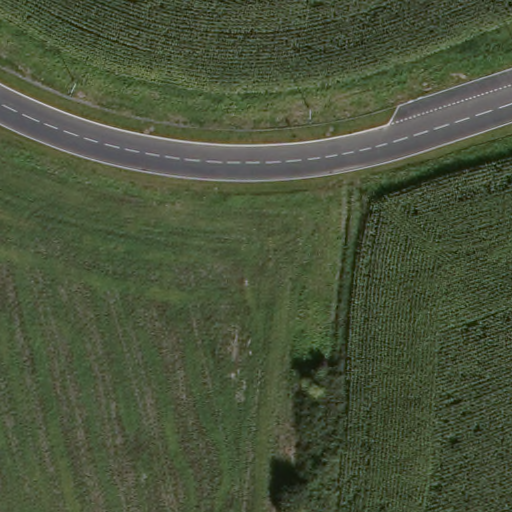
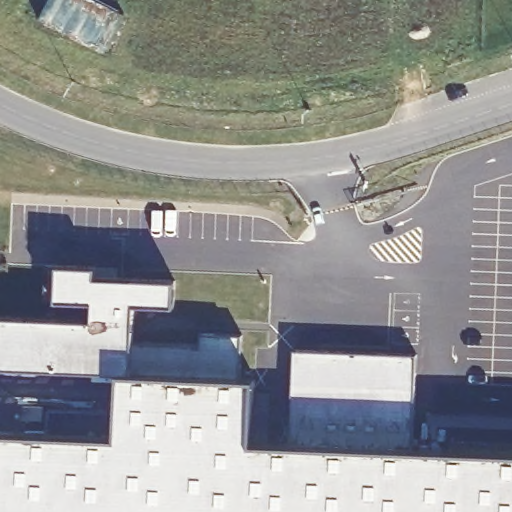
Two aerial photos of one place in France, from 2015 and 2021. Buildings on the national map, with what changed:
new [(135,302),(133,337),(200,344),(200,332),(241,334),(237,379),(255,377),(252,443),(288,445),(295,348),(416,354),(410,450),(512,453),(512,512),(0,512),(0,433),(117,438),(122,374),(121,372),(0,366),(0,315),(93,321),(94,301),(56,302),(57,265),(94,267),(95,277),(175,280),(175,304),(135,302)]

